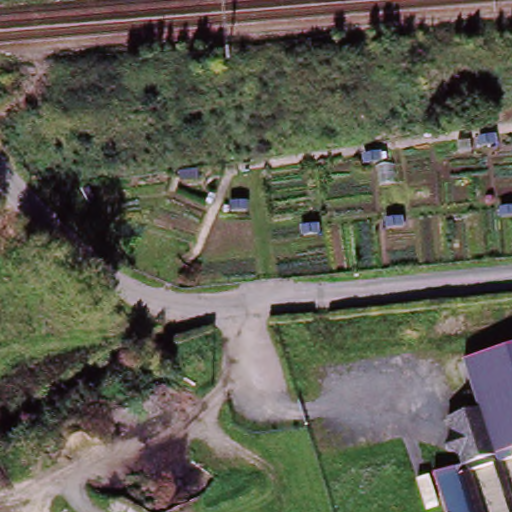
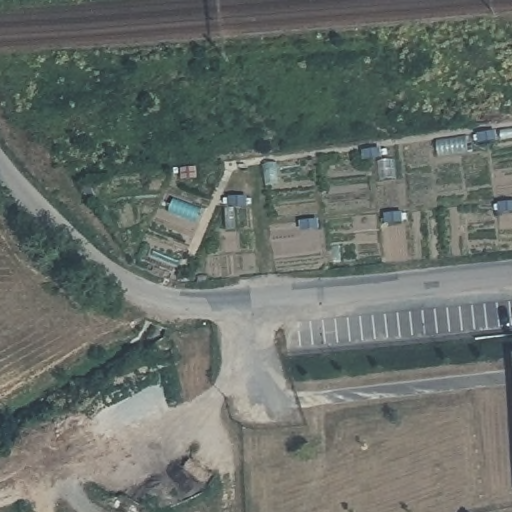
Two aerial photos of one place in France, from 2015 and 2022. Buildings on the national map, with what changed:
demolished [(452,420),(483,410),(467,360),(512,346),(512,373),(501,376),(512,410),(512,427),(493,433),(502,458),(467,469),(465,459),(468,449),(465,438),(456,433),(452,420)]
demolished [(501,376),(512,373),(512,410),(501,376)]
demolished [(512,427),(512,455),(502,458),(493,433),(512,427)]

